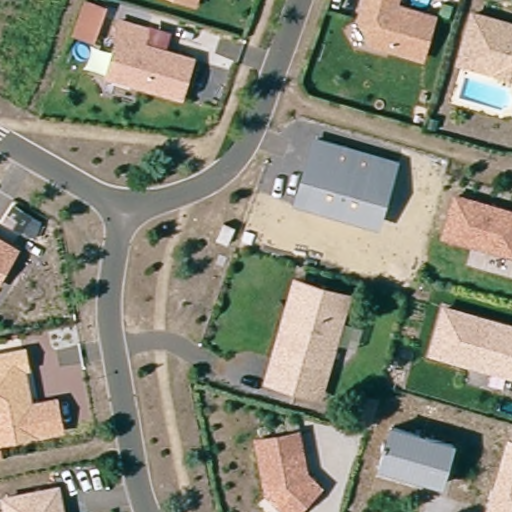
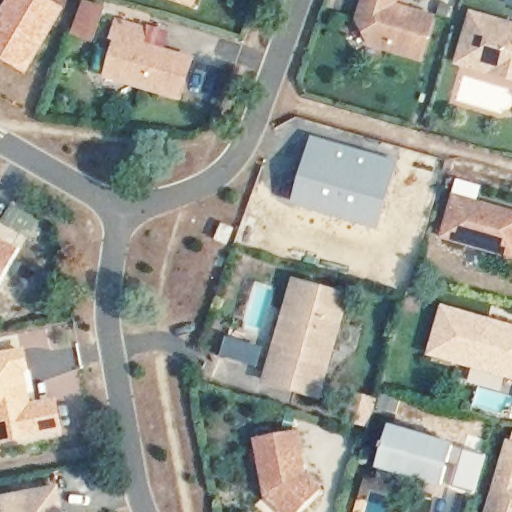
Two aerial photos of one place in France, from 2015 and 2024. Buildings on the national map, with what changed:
new [(53,0),(64,6),(22,74),(0,61),(0,7),(4,0),(53,0)]
unchanged [(95,44),(72,35),(85,0),(87,0),(109,7),(95,44)]
unchanged [(198,0),(199,0),(199,1),(198,0)]
unchanged [(372,39),(359,14),(363,0),(394,0),(394,1),(433,12),(422,52),(372,39)]
unchanged [(497,68),(463,58),(477,9),(512,19),(512,72),(497,68)]
unchanged [(151,31),(147,47),(196,61),(185,99),(111,77),(122,40),(118,39),(122,22),(151,31)]
unchanged [(402,158),(382,229),(294,202),(316,132),(402,158)]
unchanged [(512,210),(512,252),(445,232),(456,194),(512,210)]
unchanged [(211,241),(217,224),(229,229),(222,246),(211,241)]
unchanged [(0,234),(21,246),(0,283),(0,234)]
unchanged [(277,364),(302,278),(343,290),(314,391),(295,386),(272,380),(277,364)]
unchanged [(432,348),(444,305),(512,324),(512,372),(432,348)]
unchanged [(30,363),(26,365),(35,410),(0,416),(0,352),(27,347),(30,363)]
unchanged [(362,427),(342,422),(349,397),(370,402),(362,427)]
unchanged [(458,441),(446,487),(379,467),(392,421),(458,441)]
unchanged [(512,439),(512,512),(487,512),(508,437),(512,439)]
unchanged [(305,479),(319,493),(301,512),(279,512),(267,500),(256,446),(297,438),(305,479)]
unchanged [(9,501),(61,491),(65,512),(11,512),(9,501)]

